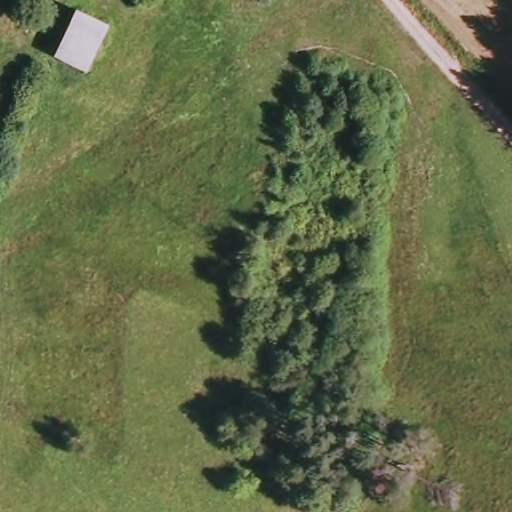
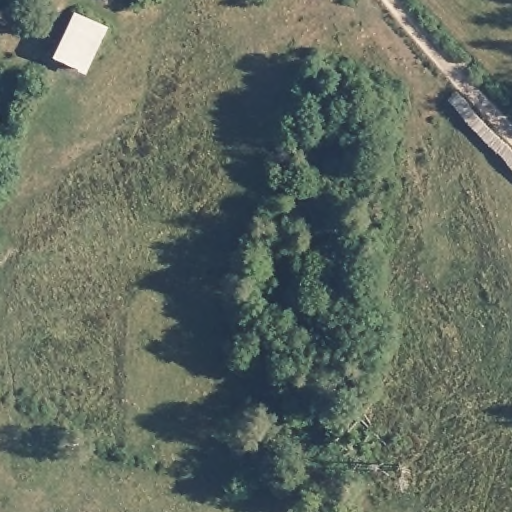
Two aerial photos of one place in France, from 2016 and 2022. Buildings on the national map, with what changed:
unchanged [(110,30),(90,69),(60,54),(80,12),(110,30)]

